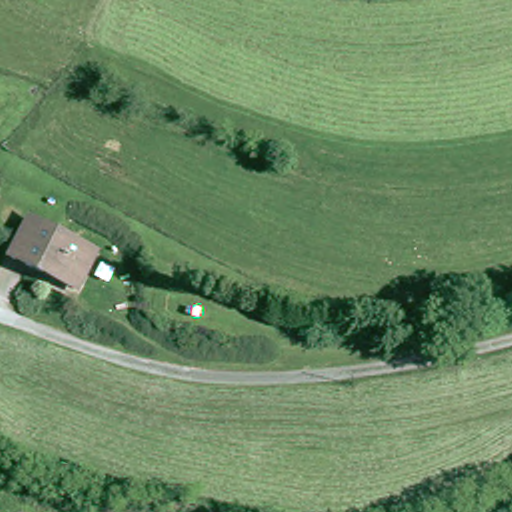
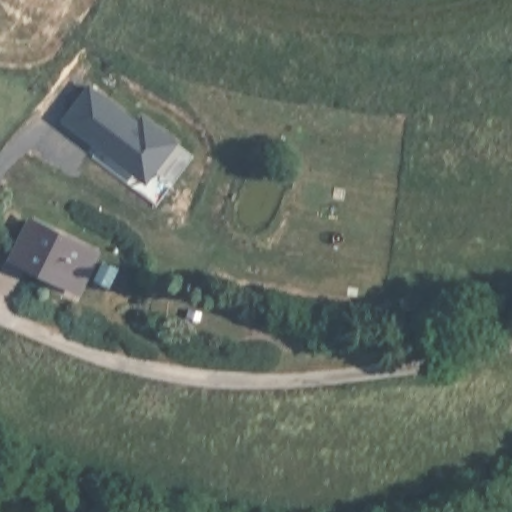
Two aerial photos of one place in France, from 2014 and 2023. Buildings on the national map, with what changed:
new [(177,141),(145,183),(62,120),(90,84),(138,120),(142,115),(177,141)]
unchanged [(44,278),(12,262),(35,227),(98,262),(80,292),(46,274),(44,278)]

